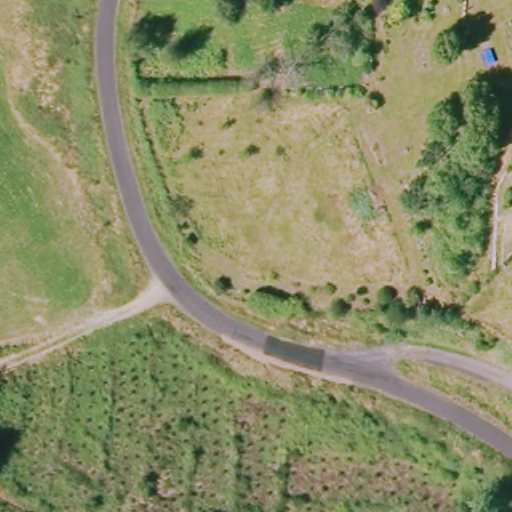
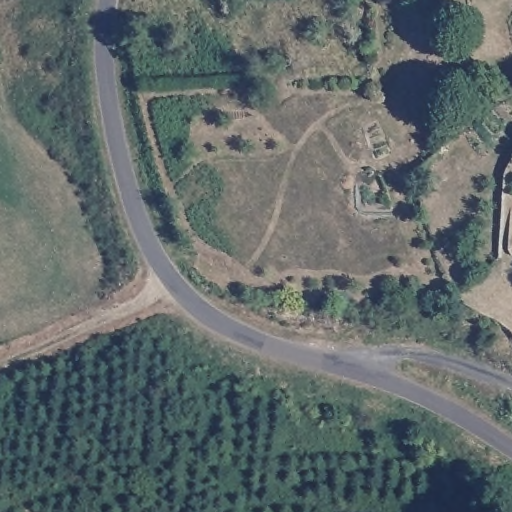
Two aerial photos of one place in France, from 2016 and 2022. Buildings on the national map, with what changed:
[]

